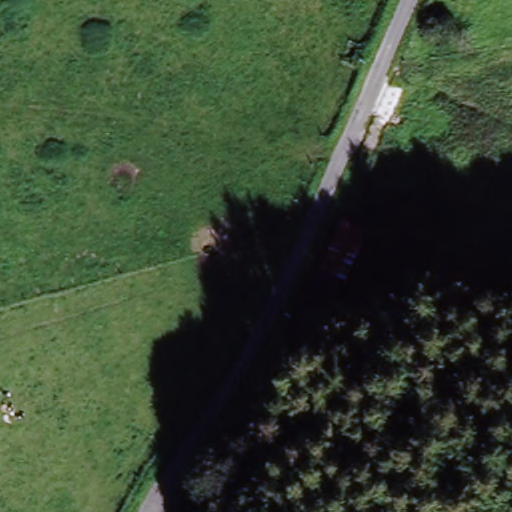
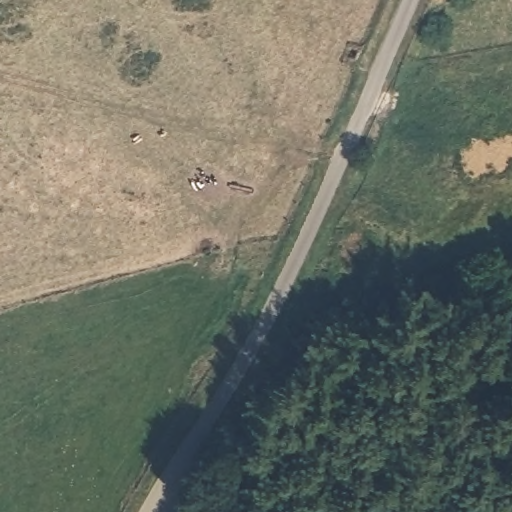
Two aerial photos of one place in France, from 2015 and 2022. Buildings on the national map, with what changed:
unchanged [(349,230),(368,244),(329,300),(321,313),(312,326),(306,328),(300,329),(291,332),(284,333),(278,334),(349,230)]

